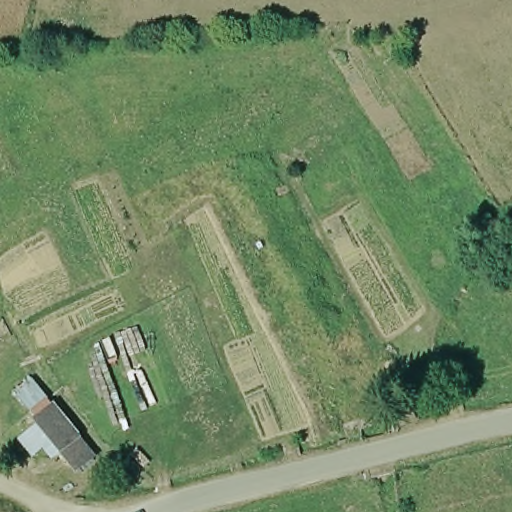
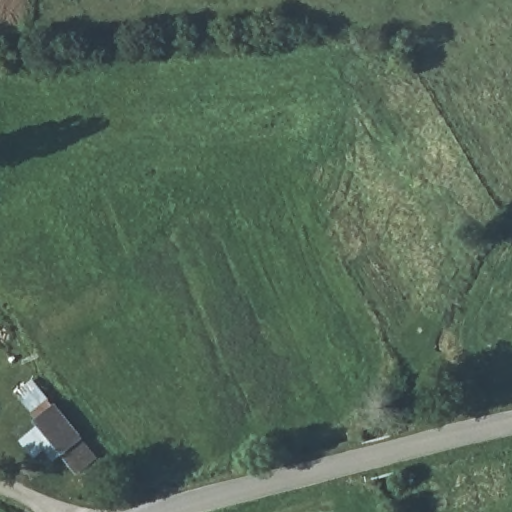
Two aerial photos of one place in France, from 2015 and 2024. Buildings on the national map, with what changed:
unchanged [(76,478),(9,396),(29,380),(96,459),(76,478)]

